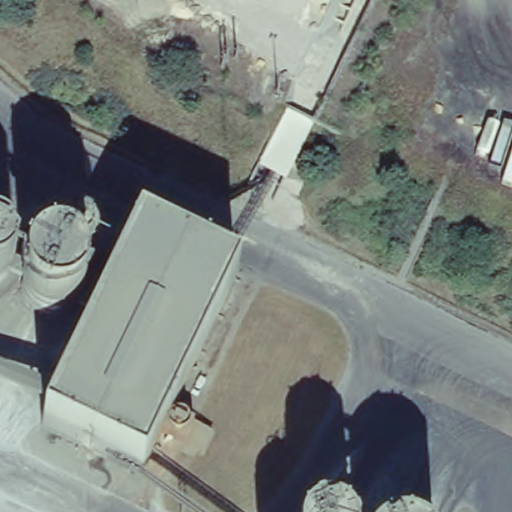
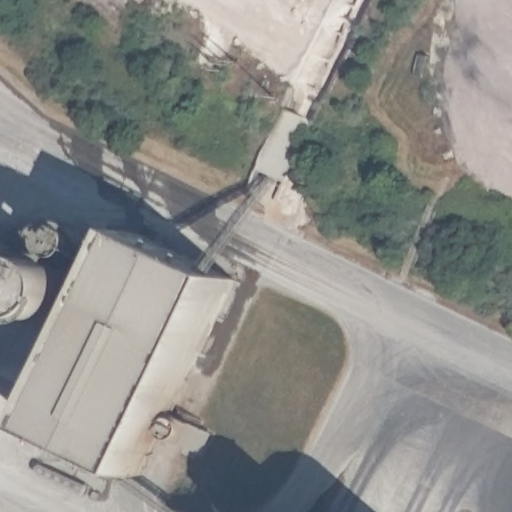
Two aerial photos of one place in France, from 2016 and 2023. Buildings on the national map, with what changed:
unchanged [(95,210),(103,209),(111,212),(116,218),(118,226),(116,234),(110,239),(102,241),(94,240),(88,234),(86,226),(87,218),(89,214),(95,210)]
unchanged [(141,232),(237,280),(141,475),(45,427),(141,232)]

